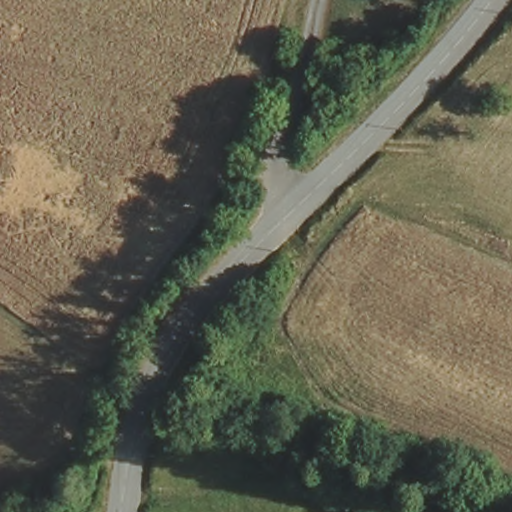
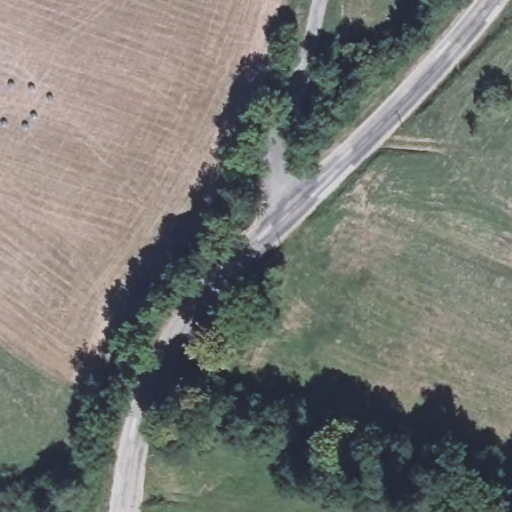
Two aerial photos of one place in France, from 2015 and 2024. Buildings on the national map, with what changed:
[]

